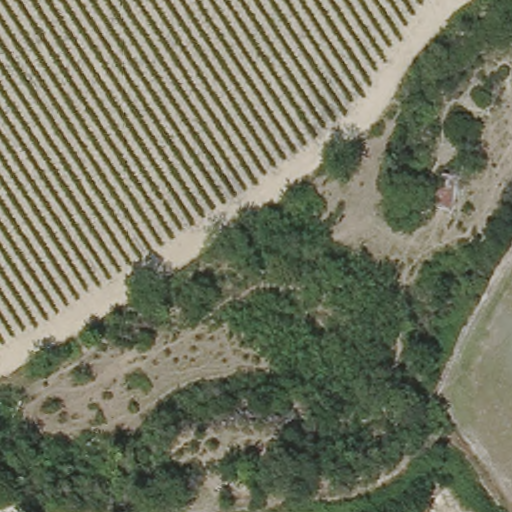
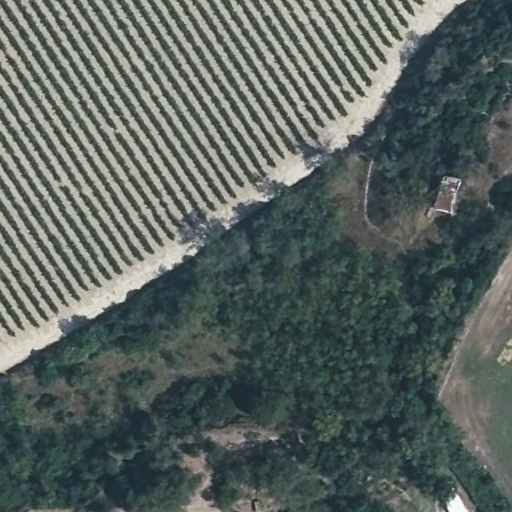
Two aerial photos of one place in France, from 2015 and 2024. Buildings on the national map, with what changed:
unchanged [(449,205),(435,202),(443,171),(457,174),(449,205)]

